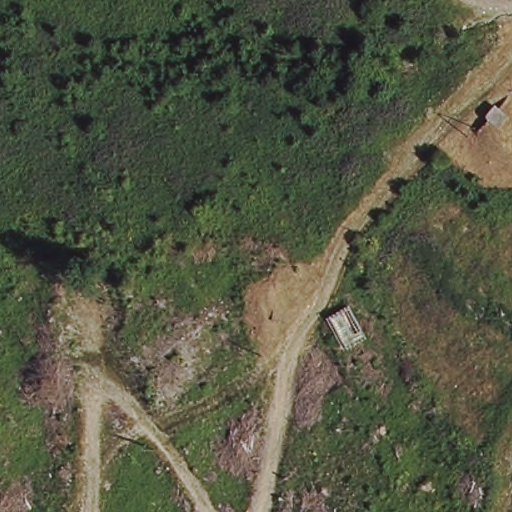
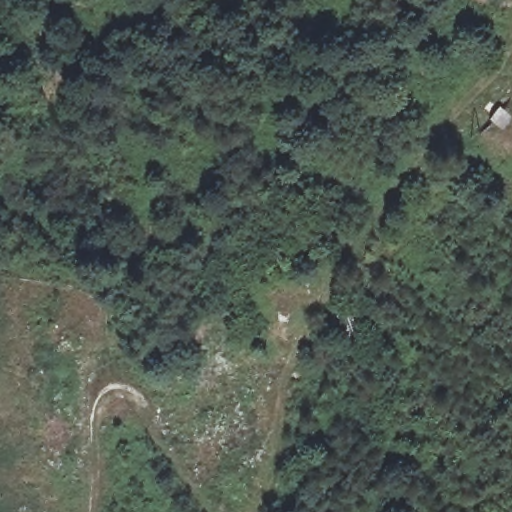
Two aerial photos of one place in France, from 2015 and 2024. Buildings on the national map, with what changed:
unchanged [(349,306),(365,334),(346,343),(332,316),(349,306)]

